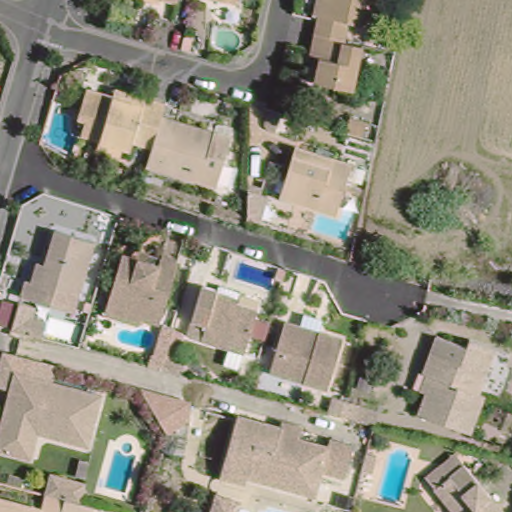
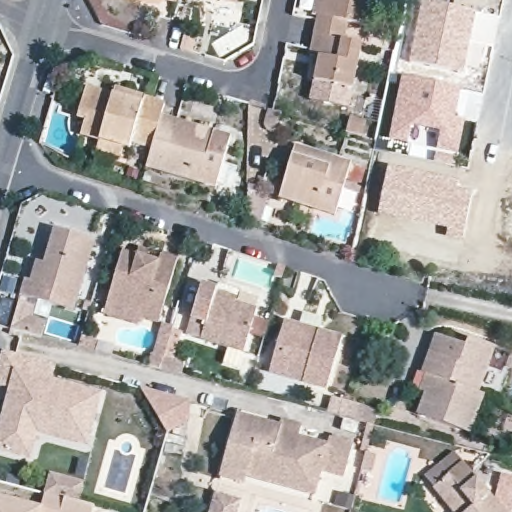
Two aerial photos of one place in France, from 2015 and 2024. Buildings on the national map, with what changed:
unchanged [(160,1),(156,0),(179,0),(178,5),(160,1)]
unchanged [(229,0),(237,0),(237,2),(229,0)]
unchanged [(345,16),(340,36),(309,29),(316,0),(373,0),(370,20),(345,16)]
new [(431,0),(435,1),(476,11),(462,74),(407,61),(419,0),(431,0)]
unchanged [(308,81),(311,59),(304,56),(309,29),(340,36),(352,39),(345,88),(308,81)]
new [(400,74),(462,89),(456,116),(465,120),(457,155),(435,150),(438,134),(412,128),(409,143),(387,139),(400,74)]
unchanged [(157,120),(148,146),(134,141),(131,148),(122,145),(120,151),(83,138),(87,124),(77,120),(87,86),(112,95),(115,85),(145,94),(163,99),(157,120)]
unchanged [(148,146),(157,120),(220,139),(207,182),(143,163),(148,146)]
unchanged [(329,221),(272,202),(288,148),(305,153),(330,161),(345,166),(329,221)]
new [(387,164),(457,181),(457,187),(472,191),(462,240),(443,235),(445,230),(375,212),(387,164)]
unchanged [(43,263),(54,228),(92,240),(68,313),(18,295),(23,278),(28,280),(35,259),(43,263)]
unchanged [(105,311),(107,301),(123,250),(135,253),(157,261),(160,252),(180,259),(159,319),(138,313),(136,321),(105,311)]
unchanged [(195,310),(203,282),(217,287),(245,296),(242,306),(252,308),(242,348),(202,336),(190,327),(195,310)]
unchanged [(30,308),(28,318),(25,328),(7,323),(12,303),(30,308)]
unchanged [(282,319),(297,324),(315,329),(341,337),(327,384),(267,367),(282,319)]
unchanged [(441,341),(470,352),(475,342),(498,354),(480,399),(470,395),(457,430),(424,416),(437,382),(425,377),(441,341)]
unchanged [(0,456),(0,441),(11,399),(0,396),(0,369),(1,365),(50,377),(47,391),(100,403),(90,443),(43,430),(25,442),(22,461),(0,456)]
unchanged [(342,415),(328,411),(332,390),(345,394),(359,397),(356,418),(342,415)]
new [(189,402),(185,424),(164,435),(142,391),(189,402)]
unchanged [(246,477),(224,470),(240,418),(283,429),(282,437),(300,442),(315,446),(312,453),(330,457),(332,449),(334,440),(355,446),(346,479),(325,473),(320,490),(250,468),(246,477)]
unchanged [(422,477),(442,461),(460,465),(502,512),(453,512),(432,488),(422,477)]
unchanged [(47,489),(72,496),(67,512),(0,512),(0,498),(44,508),(47,489)]
unchanged [(217,490),(233,494),(240,496),(237,512),(212,512),(217,490)]

